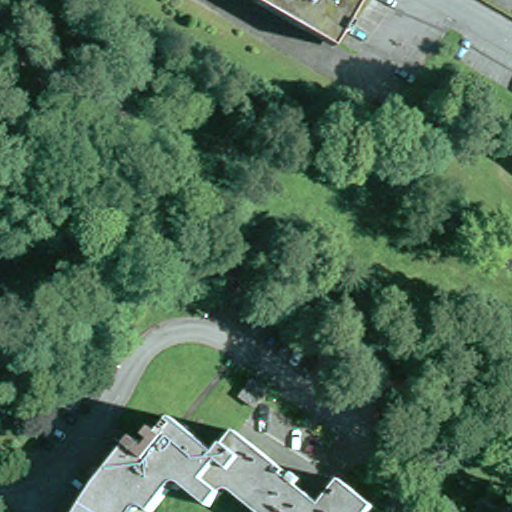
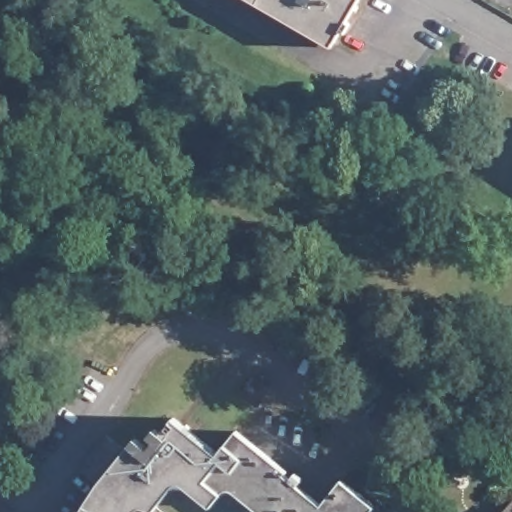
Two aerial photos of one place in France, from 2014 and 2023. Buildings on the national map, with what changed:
unchanged [(361,8),(346,34),(350,35),(345,45),(341,44),(335,55),(241,0),(348,0),(361,8)]
unchanged [(262,380),(278,390),(266,408),(250,398),(262,380)]
unchanged [(160,446),(154,440),(159,434),(165,439),(178,423),(222,458),(229,451),(240,460),(245,464),(243,467),(240,471),(235,478),(229,473),(223,468),(209,487),(212,490),(220,497),(225,501),(216,512),(210,512),(187,493),(180,489),(162,512),(160,512),(161,511),(146,500),(137,512),(89,512),(94,503),(103,489),(135,451),(147,460),(160,446)]
unchanged [(325,510),(345,484),(378,511),(378,512),(259,512),(235,494),(231,495),(225,501),(220,497),(212,490),(209,487),(223,468),(229,473),(235,478),(240,471),(243,467),(245,464),(240,460),(229,451),(241,437),(290,476),(288,479),(293,484),(299,478),(305,483),(300,489),(325,510)]

